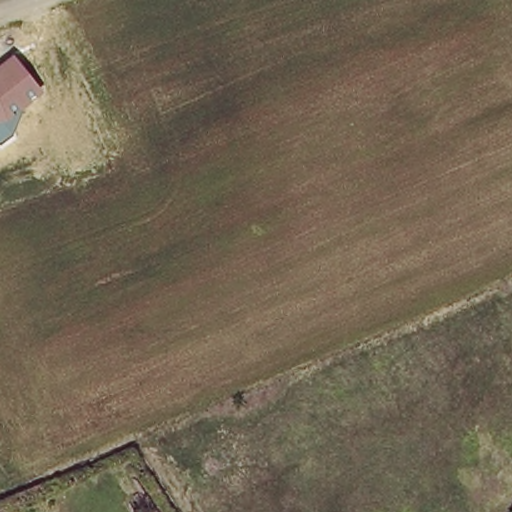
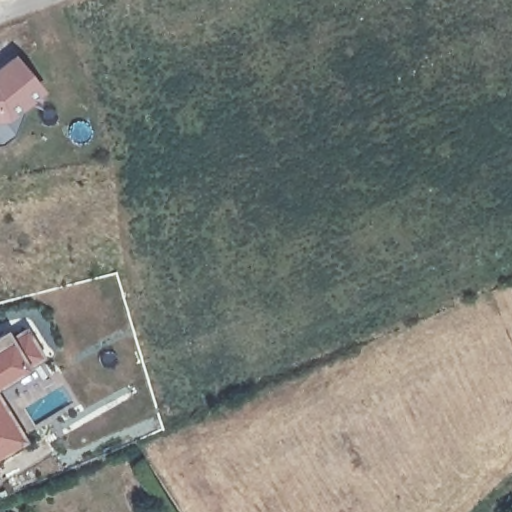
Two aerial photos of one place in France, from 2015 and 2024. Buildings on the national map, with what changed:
unchanged [(43,90),(25,106),(15,132),(3,145),(0,145),(0,66),(14,54),(43,90)]
new [(10,337),(25,330),(41,356),(25,363),(28,367),(0,384),(0,333),(5,330),(10,337)]
new [(0,453),(0,403),(23,440),(0,453)]

